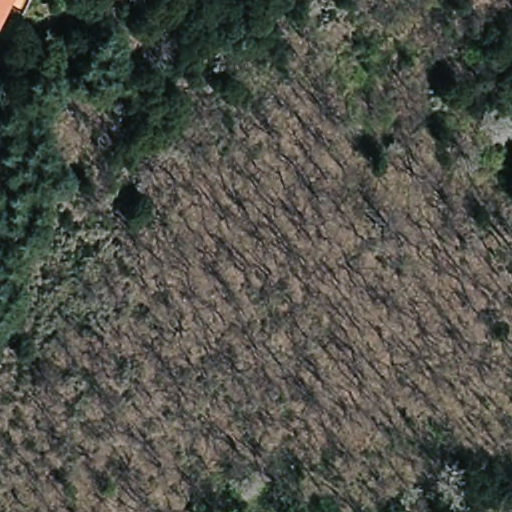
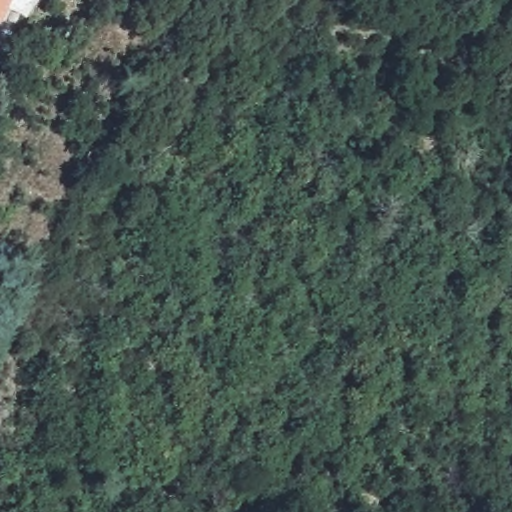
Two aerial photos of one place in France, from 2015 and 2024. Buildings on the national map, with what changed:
unchanged [(0,0),(13,0),(1,25),(0,24),(0,0)]

